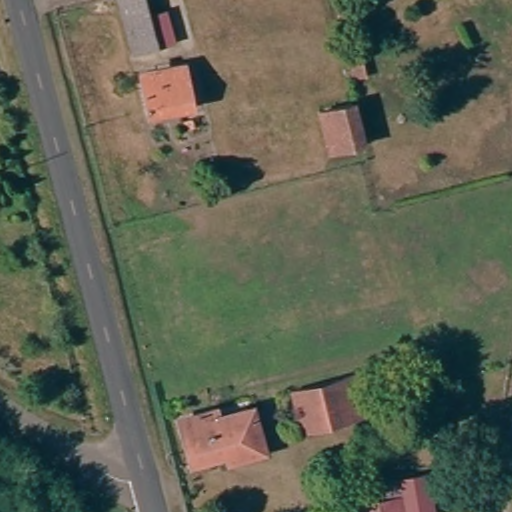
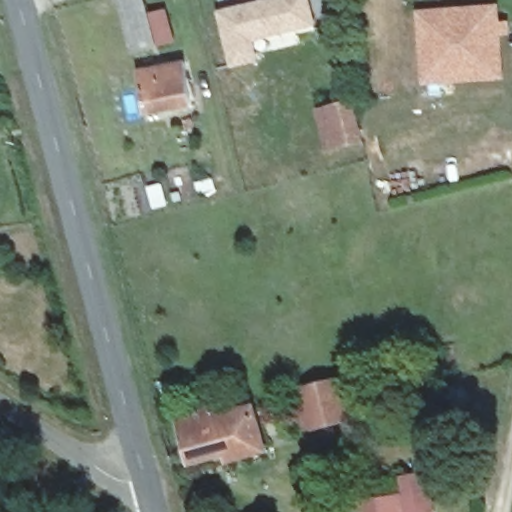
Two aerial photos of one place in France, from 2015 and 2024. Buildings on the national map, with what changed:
unchanged [(128,54),(114,0),(141,0),(146,15),(164,12),(174,44),(128,54)]
new [(261,0),(310,0),(317,29),(266,43),(266,41),(260,42),(261,49),(258,50),(260,63),(230,70),(217,11),(261,0)]
new [(500,3),(502,21),(510,20),(511,37),(503,37),(506,81),(422,86),(416,9),(500,3)]
unchanged [(190,61),(200,109),(141,122),(130,75),(162,67),(190,61)]
unchanged [(359,141),(325,151),(314,112),(350,102),(359,141)]
unchanged [(305,434),(295,397),(355,381),(365,419),(305,434)]
unchanged [(221,446),(184,456),(174,421),(215,410),(219,426),(256,415),(262,436),(266,452),(225,462),(221,446)]
unchanged [(383,512),(374,482),(418,470),(430,512),(383,512)]

